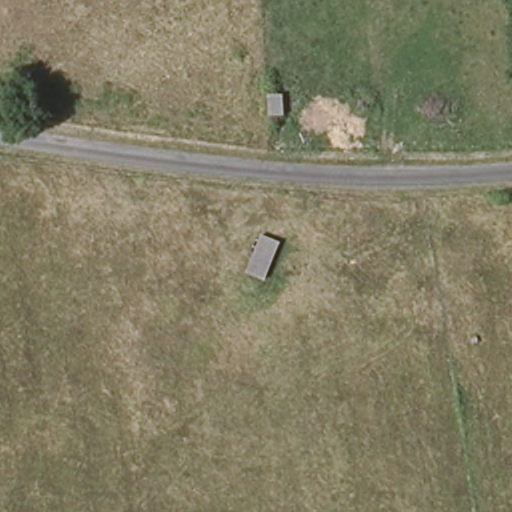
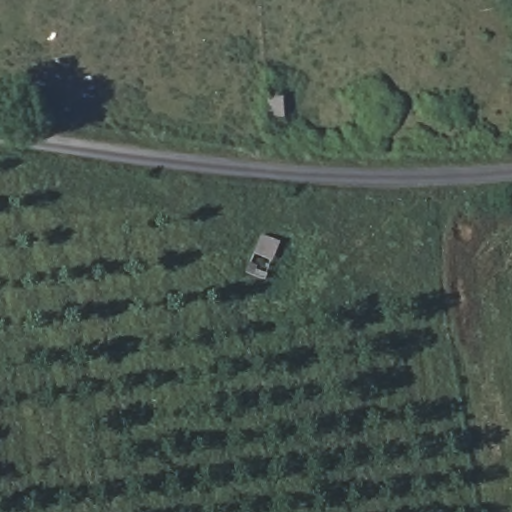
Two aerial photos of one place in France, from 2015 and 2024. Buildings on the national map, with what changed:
unchanged [(270,120),(270,93),(285,94),(286,120),(270,120)]
unchanged [(265,281),(246,273),(261,234),(282,241),(265,281)]

